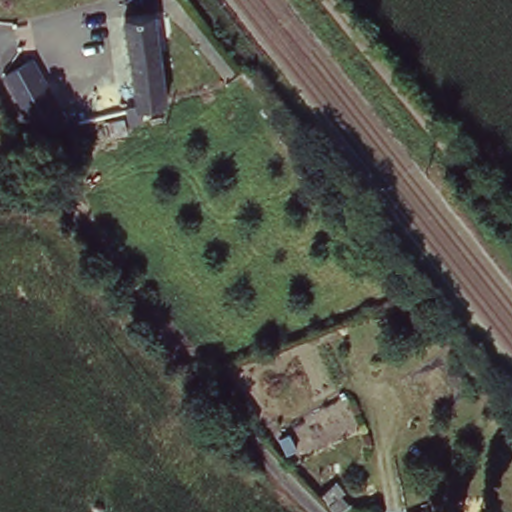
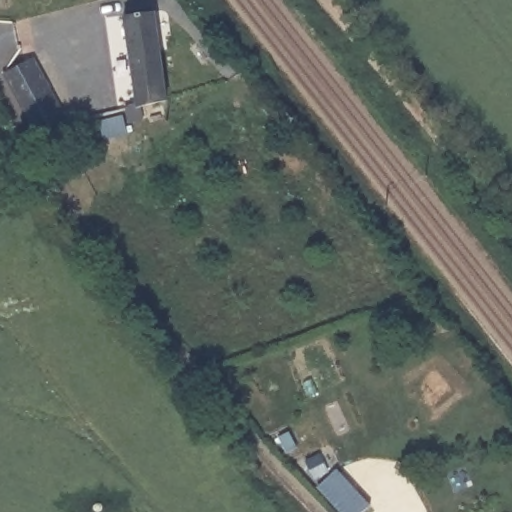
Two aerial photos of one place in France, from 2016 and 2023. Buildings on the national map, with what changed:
unchanged [(127,121),(124,109),(133,107),(121,15),(153,12),(165,101),(139,105),(141,119),(127,121)]
unchanged [(36,55),(72,120),(39,128),(5,69),(36,55)]
new [(370,506),(364,512),(340,512),(317,488),(336,470),(370,506)]

